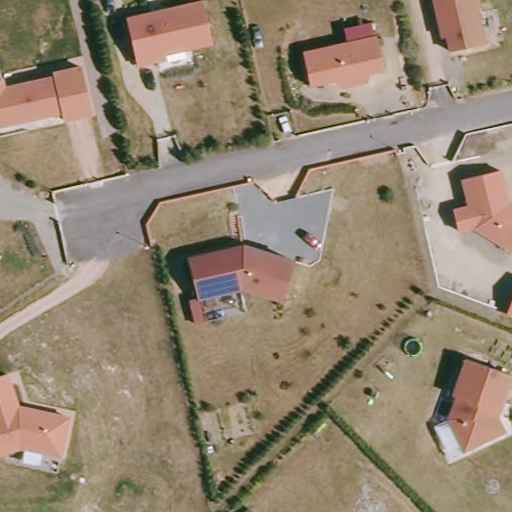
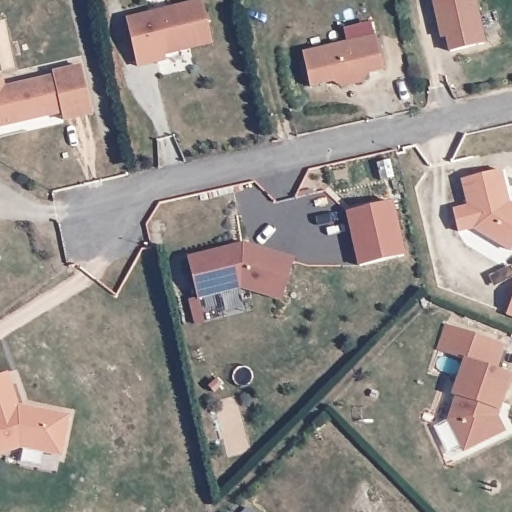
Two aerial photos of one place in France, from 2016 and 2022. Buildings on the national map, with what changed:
unchanged [(435,0),(475,0),(486,43),(453,51),(449,37),(444,38),(442,28),(435,0)]
unchanged [(163,62),(143,66),(133,20),(208,3),(217,45),(170,55),(171,60),(163,62)]
unchanged [(306,53),(379,37),(387,69),(371,73),(366,81),(346,86),(338,81),(314,86),(306,53)]
unchanged [(0,74),(3,76),(5,85),(55,74),(54,70),(83,64),(93,109),(65,116),(63,108),(33,115),(27,117),(0,123),(0,74)]
unchanged [(477,226),(477,225),(461,229),(456,208),(471,204),(464,178),(502,168),(510,201),(512,202),(512,248),(493,236),(485,231),(477,226)]
new [(393,201),(407,255),(359,266),(347,213),(393,201)]
unchanged [(284,300),(244,288),(199,300),(186,256),(244,240),(296,258),(284,300)]
unchanged [(507,315),(512,300),(512,317),(507,315)]
new [(446,325),(504,344),(497,369),(469,360),(439,347),(446,325)]
unchanged [(507,431),(499,435),(468,450),(453,420),(461,397),(456,396),(469,360),(512,375),(512,382),(502,411),(500,417),(507,431)]
unchanged [(19,403),(70,414),(62,457),(20,450),(0,456),(0,376),(8,373),(19,403)]

